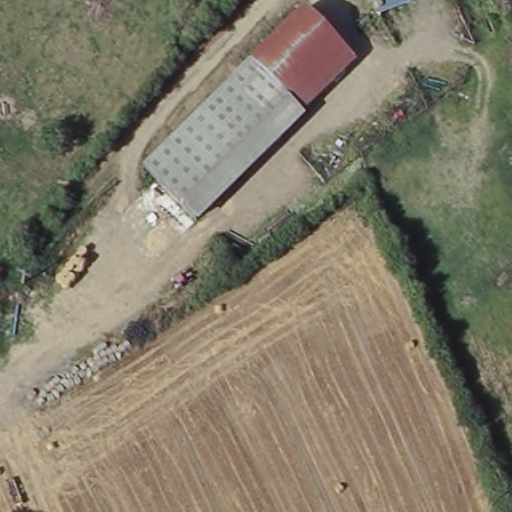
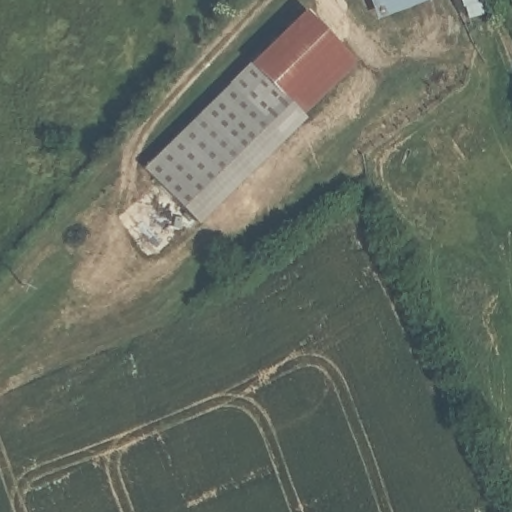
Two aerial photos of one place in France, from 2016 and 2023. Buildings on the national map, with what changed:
unchanged [(368,0),(442,0),(376,20),(368,0)]
unchanged [(226,86),(309,7),(358,58),(305,111),(307,114),(280,140),(226,86)]
unchanged [(226,86),(280,140),(192,225),(139,171),(226,86)]

